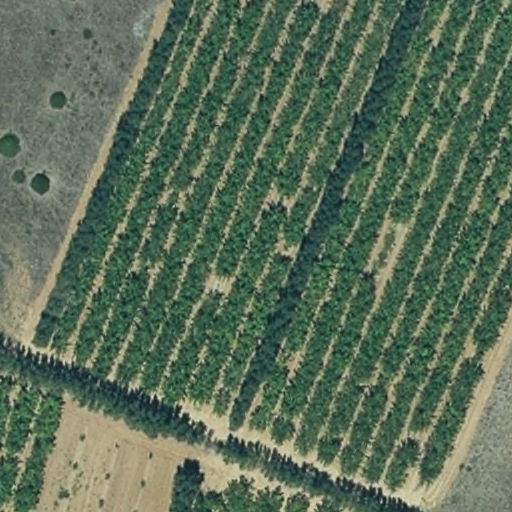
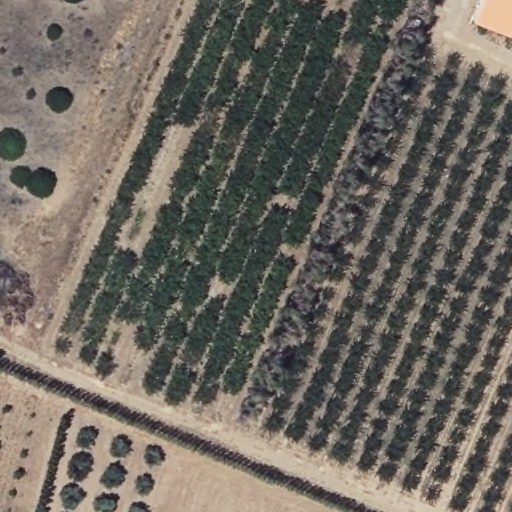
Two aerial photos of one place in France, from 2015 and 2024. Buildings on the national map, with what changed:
new [(472,21),(481,0),(512,0),(512,37),(472,21)]

